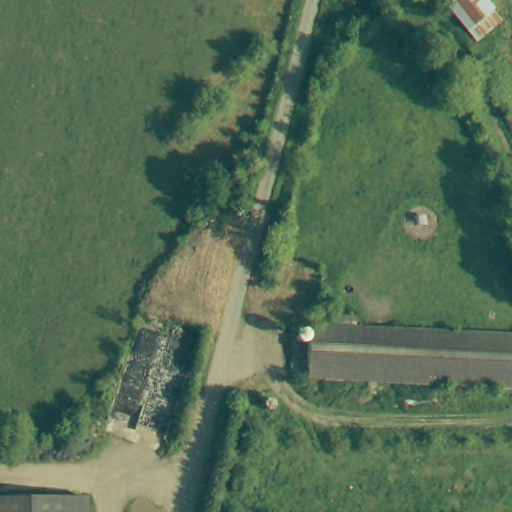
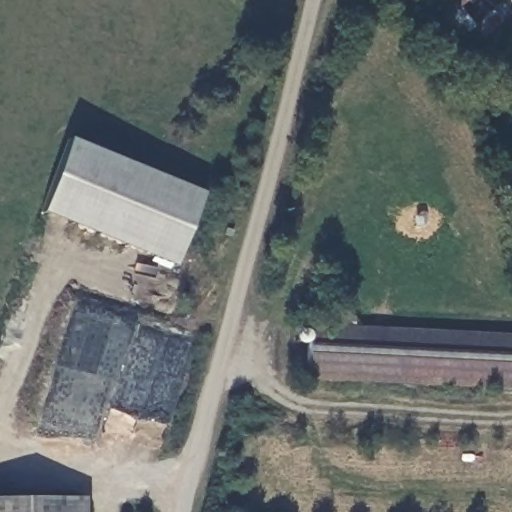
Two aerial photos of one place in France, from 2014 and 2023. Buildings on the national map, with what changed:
unchanged [(489,17),(463,41),(428,0),(475,0),(489,17)]
new [(74,136),(209,191),(178,265),(44,210),(74,136)]
unchanged [(325,331),(326,320),(350,322),(350,333),(512,342),(512,390),(300,377),(303,330),(325,331)]
unchanged [(83,501),(83,512),(0,512),(0,501),(83,501)]

